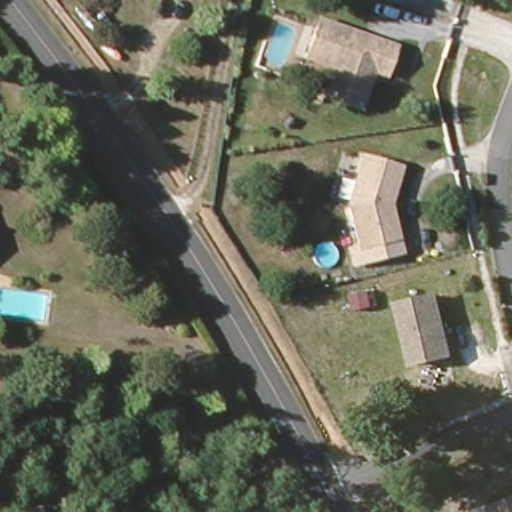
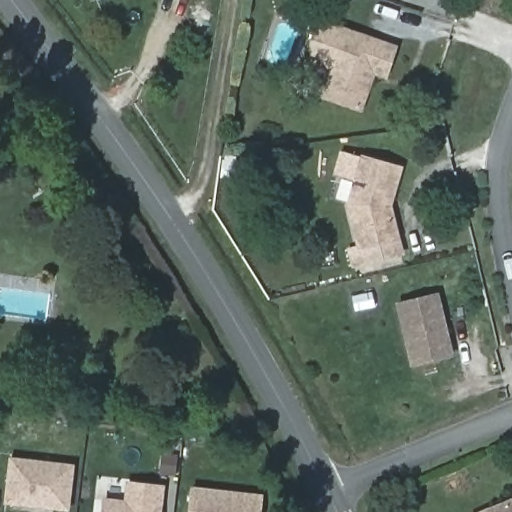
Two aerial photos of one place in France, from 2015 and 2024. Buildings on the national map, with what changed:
unchanged [(356,106),(321,90),(333,62),(307,51),(322,15),(396,48),(384,75),(372,69),(365,85),(356,106)]
unchanged [(382,203),(390,237),(352,245),(342,203),(357,157),(393,168),(382,203)]
unchanged [(437,290),(453,355),(408,366),(392,300),(437,290)]
new [(75,469),(69,512),(8,505),(13,462),(75,469)]
new [(107,503),(129,506),(131,486),(164,490),(161,512),(106,512),(107,503)]
new [(264,499),(262,512),(191,512),(193,491),(264,499)]
unchanged [(490,506),(512,497),(512,512),(492,512),(490,506)]

